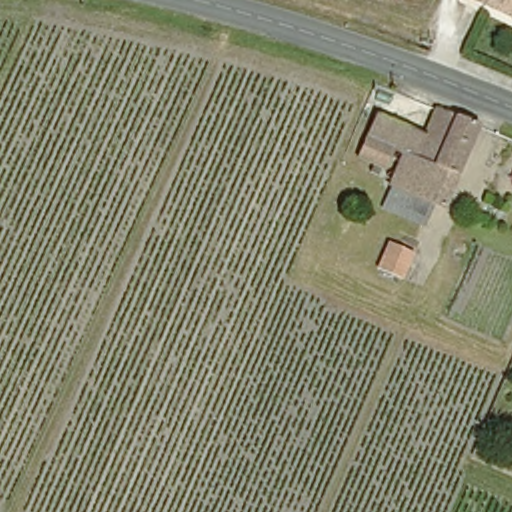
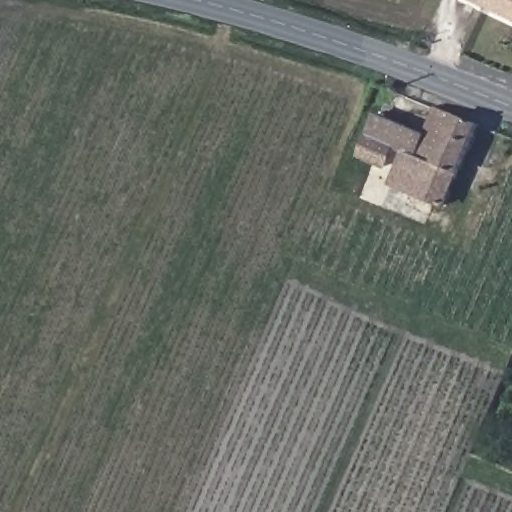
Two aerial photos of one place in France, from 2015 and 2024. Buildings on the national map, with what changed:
unchanged [(512,0),(512,25),(462,0),(512,0)]
unchanged [(377,205),(382,193),(387,180),(401,149),(392,145),(383,165),(356,155),(374,110),(421,131),(432,104),(474,121),(438,201),(430,197),(425,212),(420,223),(377,205)]
demolished [(388,245),(413,257),(402,280),(377,267),(388,245)]

